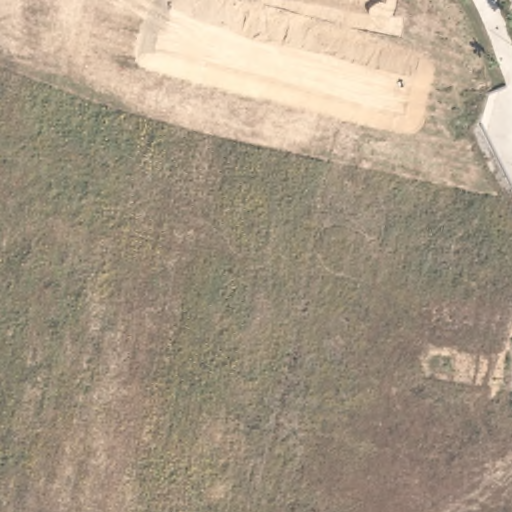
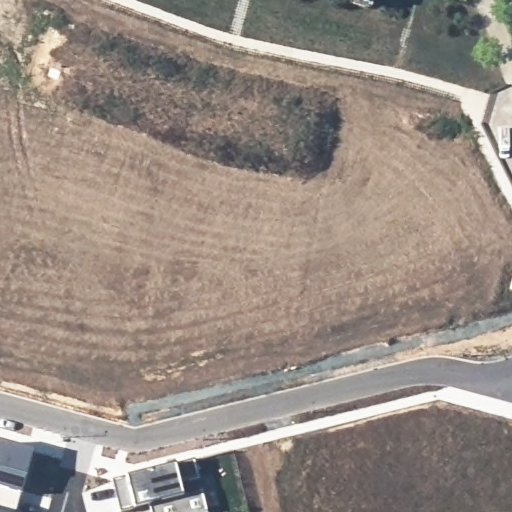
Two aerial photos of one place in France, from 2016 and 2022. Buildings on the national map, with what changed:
new [(29,453),(13,512),(0,512),(0,445),(29,453)]
new [(172,465),(192,460),(196,477),(178,481),(182,496),(200,492),(205,512),(146,512),(144,507),(133,510),(125,512),(117,512),(109,481),(123,477),(172,465)]

